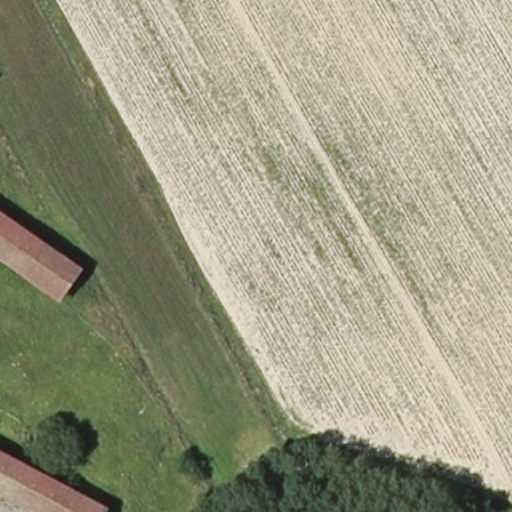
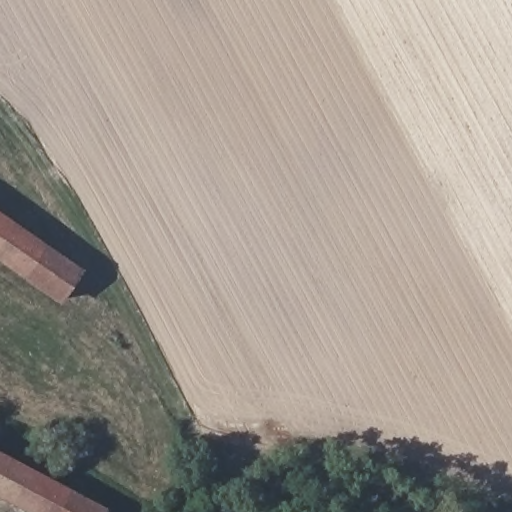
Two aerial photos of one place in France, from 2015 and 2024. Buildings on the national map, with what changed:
unchanged [(0,258),(0,214),(81,271),(61,301),(0,258)]
unchanged [(113,512),(22,512),(0,500),(0,453),(113,512)]

